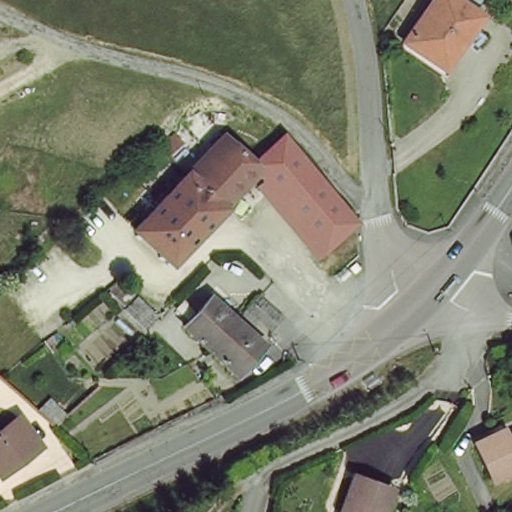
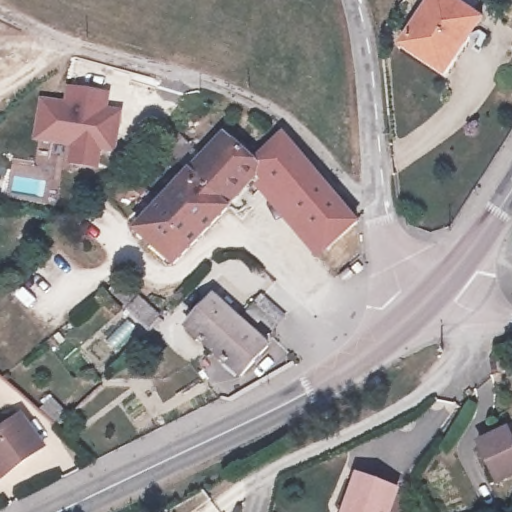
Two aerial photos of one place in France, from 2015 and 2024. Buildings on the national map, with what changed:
unchanged [(404,46),(433,0),(454,0),(481,19),(446,72),(404,46)]
new [(39,97),(63,101),(65,87),(111,92),(109,109),(123,111),(115,156),(101,153),(98,170),(65,167),(68,147),(33,142),(39,97)]
unchanged [(215,204),(204,194),(187,178),(224,139),(254,167),(283,140),(286,144),(303,165),(319,183),(307,192),(303,197),(289,208),(258,175),(223,212),(215,204)]
unchanged [(204,194),(215,204),(223,212),(226,214),(209,231),(183,258),(174,267),(169,263),(166,266),(161,263),(158,262),(161,257),(143,240),(139,244),(135,240),(134,240),(138,236),(125,223),(141,206),(151,216),(187,178),(204,194)]
unchanged [(321,186),(355,227),(358,234),(360,242),(361,247),(350,256),(338,242),(327,252),(289,208),(303,197),(307,192),(319,183),(321,186)]
unchanged [(284,325),(274,336),(263,327),(258,332),(245,322),(236,314),(239,307),(229,298),(239,287),(261,305),(284,325)]
unchanged [(159,310),(163,313),(151,327),(132,309),(143,297),(159,310)]
unchanged [(266,352),(241,382),(212,358),(186,337),(212,307),(238,329),(266,352)]
unchanged [(48,395),(66,412),(55,423),(36,407),(48,395)]
unchanged [(46,450),(5,481),(0,474),(0,438),(23,421),(46,450)]
unchanged [(504,483),(486,448),(512,434),(512,479),(504,483)]
unchanged [(394,492),(388,512),(343,512),(353,481),(394,492)]

